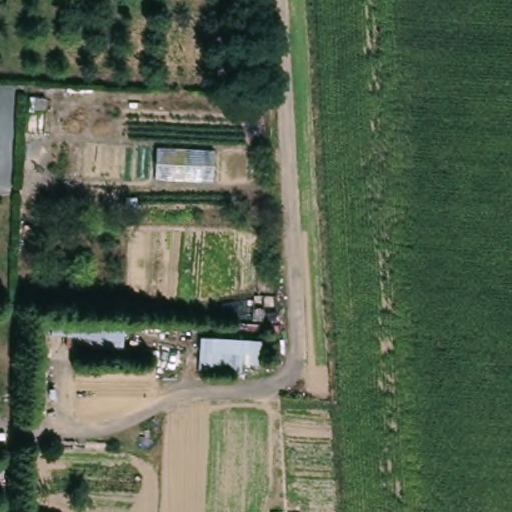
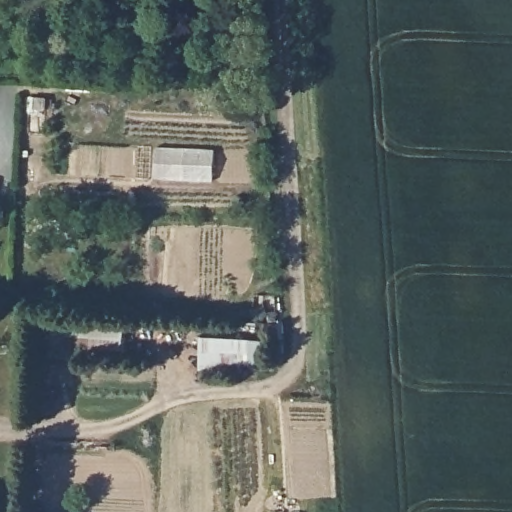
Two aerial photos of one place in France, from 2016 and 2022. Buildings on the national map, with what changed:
unchanged [(63,319),(122,323),(120,352),(60,348),(63,319)]
unchanged [(195,337),(264,341),(263,367),(237,365),(237,355),(194,353),(195,337)]

